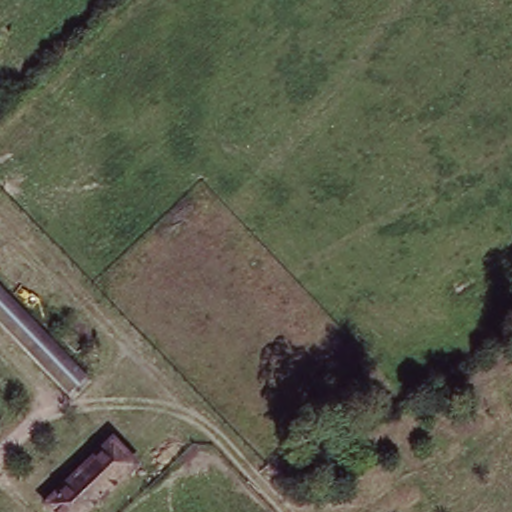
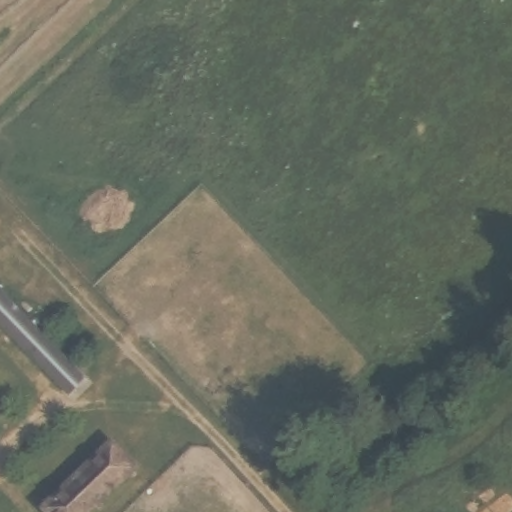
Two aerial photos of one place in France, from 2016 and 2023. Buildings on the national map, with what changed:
unchanged [(0,289),(85,378),(71,392),(0,317),(0,289)]
unchanged [(137,458),(81,512),(58,512),(45,499),(112,434),(137,458)]

